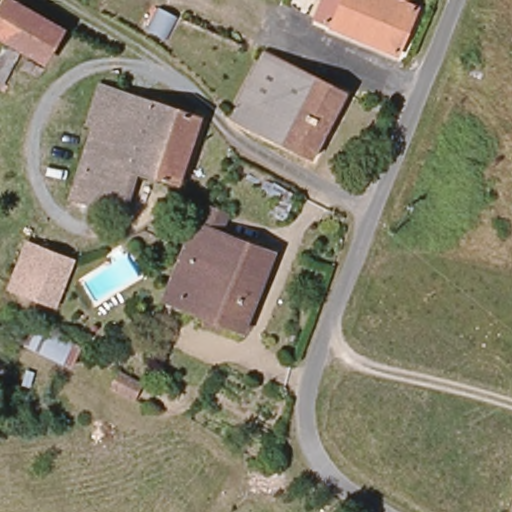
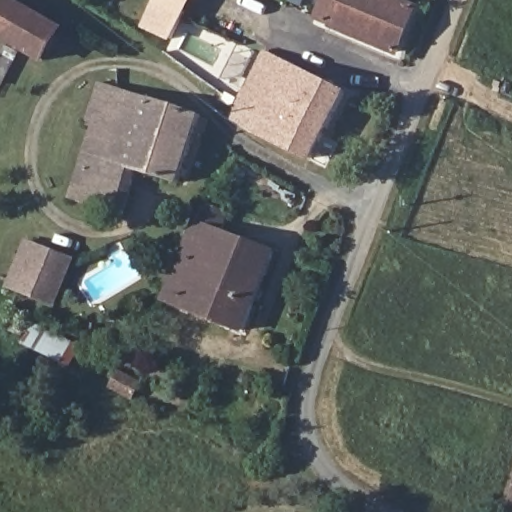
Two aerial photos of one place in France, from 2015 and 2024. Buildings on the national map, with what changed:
unchanged [(0,35),(0,1),(0,0),(3,0),(57,28),(42,57),(0,35)]
new [(169,41),(142,30),(156,0),(192,0),(169,41)]
unchanged [(395,55),(340,28),(315,16),(323,0),(381,0),(414,16),(395,55)]
unchanged [(0,83),(0,60),(5,45),(18,50),(10,75),(5,85),(0,83)]
unchanged [(232,120),(263,58),(344,95),(310,161),(232,120)]
unchanged [(101,144),(92,136),(110,86),(202,124),(178,186),(139,171),(97,155),(101,144)]
unchanged [(139,171),(119,219),(77,201),(97,155),(139,171)]
unchanged [(191,233),(198,222),(210,212),(227,221),(221,240),(270,260),(238,339),(160,307),(191,233)]
unchanged [(5,291),(17,265),(27,268),(38,249),(75,265),(54,314),(14,297),(5,291)]
unchanged [(21,347),(37,325),(84,348),(73,371),(21,347)]
unchanged [(122,370),(147,381),(135,405),(109,395),(122,370)]
new [(512,512),(510,512),(512,505),(512,512)]

